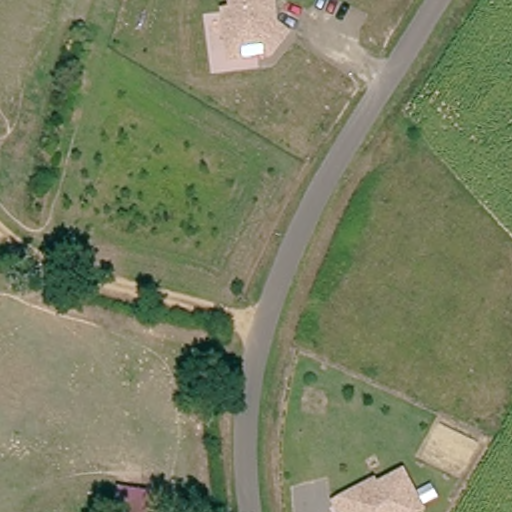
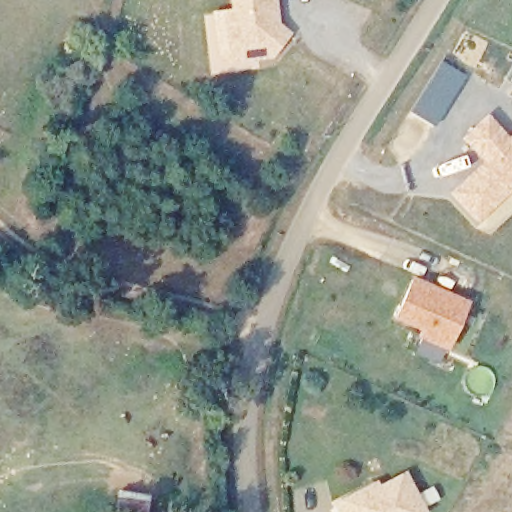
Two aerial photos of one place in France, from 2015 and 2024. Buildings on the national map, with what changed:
unchanged [(233,56),(228,17),(236,16),(234,0),(275,0),(276,8),(278,30),(290,39),(274,61),(262,62),(234,65),(233,56)]
new [(407,110),(440,60),(465,76),(433,126),(407,110)]
new [(508,137),(512,134),(512,191),(477,224),(449,192),(482,164),(460,138),(486,114),(508,137)]
new [(469,301),(449,352),(417,339),(420,330),(394,320),(411,276),(469,301)]
unchanged [(376,480),(379,486),(405,472),(425,512),(336,512),(332,502),(376,480)]
unchanged [(113,512),(118,488),(150,494),(147,512),(113,512)]

